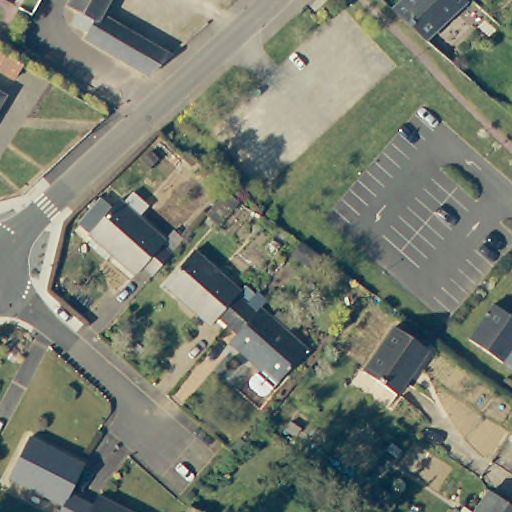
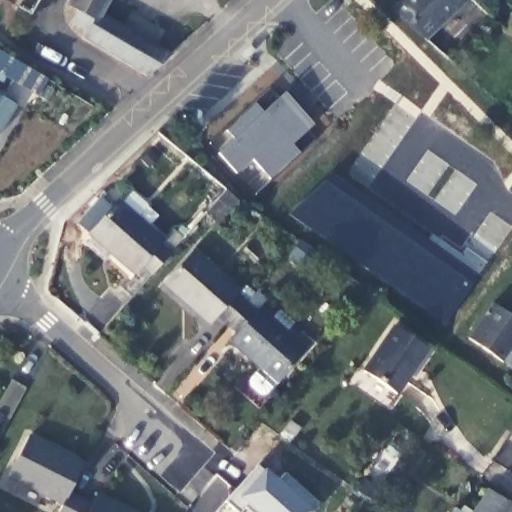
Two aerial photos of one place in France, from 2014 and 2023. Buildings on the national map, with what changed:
unchanged [(44,1),(42,0),(44,0),(44,1)]
unchanged [(86,34),(71,25),(78,12),(68,7),(71,0),(106,0),(97,16),(170,56),(147,76),(83,40),(86,34)]
unchanged [(388,15),(401,0),(460,0),(450,11),(419,45),(403,30),(388,15)]
unchanged [(0,52),(21,65),(14,79),(0,70),(0,52)]
new [(280,99),(285,92),(314,125),(308,131),(316,140),(257,194),(210,142),(269,87),(280,99)]
unchanged [(0,100),(0,95),(2,97),(0,100)]
unchanged [(121,200),(131,189),(146,202),(136,215),(162,237),(171,227),(181,236),(151,271),(141,262),(135,271),(111,250),(106,255),(88,239),(92,234),(86,229),(78,221),(100,195),(109,202),(115,196),(121,200)]
unchanged [(224,190),(236,200),(216,224),(204,214),(224,190)]
unchanged [(291,256),(302,244),(322,259),(310,272),(291,256)]
unchanged [(222,312),(215,320),(169,279),(197,246),(244,287),(241,291),(251,298),(232,321),(222,312)]
unchanged [(251,298),(260,307),(263,303),(311,344),(282,377),(235,337),(242,330),(232,321),(251,298)]
unchanged [(469,342),(492,307),(512,320),(512,337),(495,361),(469,342)]
unchanged [(427,349),(396,395),(363,372),(394,326),(427,349)]
unchanged [(508,369),(510,366),(505,363),(503,367),(495,361),(512,337),(512,372),(508,369)]
unchanged [(8,473),(28,434),(83,462),(69,490),(81,496),(72,512),(58,512),(63,502),(8,473)]
new [(251,512),(245,507),(240,512),(238,512),(226,501),(257,467),(263,471),(265,468),(279,481),(285,473),(318,503),(310,512),(251,512)]
unchanged [(91,502),(97,491),(138,512),(72,512),(81,496),(91,502)]
unchanged [(473,512),(488,492),(512,510),(512,512),(473,512)]
demolished [(189,507),(199,512),(185,512),(187,508),(189,507)]

